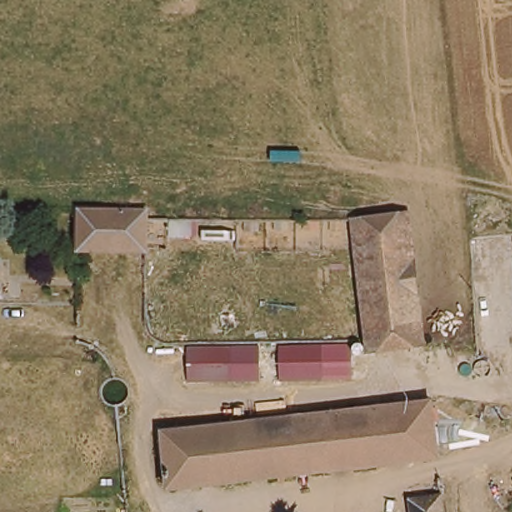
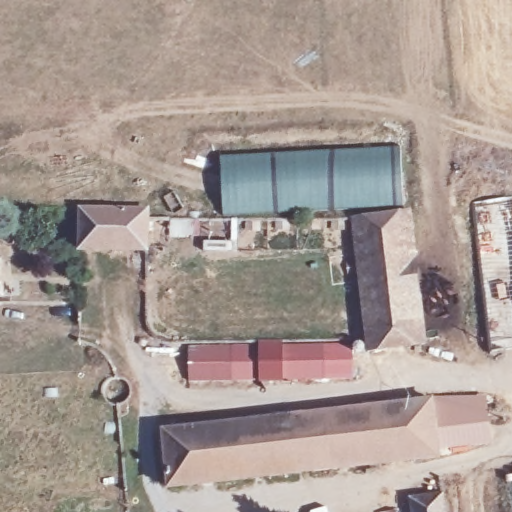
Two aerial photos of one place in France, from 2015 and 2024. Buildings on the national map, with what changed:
new [(398,146),(401,206),(223,215),(221,155),(398,146)]
new [(474,200),(512,195),(512,350),(493,353),(474,200)]
unchanged [(147,251),(80,249),(80,207),(148,209),(148,214),(175,214),(173,229),(148,229),(148,234),(147,251)]
unchanged [(353,381),(187,384),(187,344),(224,344),(366,344),(350,222),(409,211),(430,344),(372,354),(353,356),(353,381)]
unchanged [(0,297),(0,260),(5,260),(7,297),(0,297)]
new [(490,444),(437,451),(433,407),(433,399),(486,398),(490,444)]
unchanged [(438,461),(170,487),(167,436),(433,407),(438,461)]
unchanged [(407,502),(446,496),(448,512),(408,512),(407,502)]

